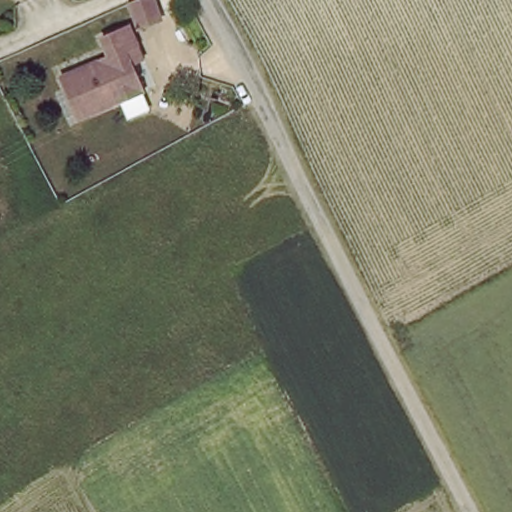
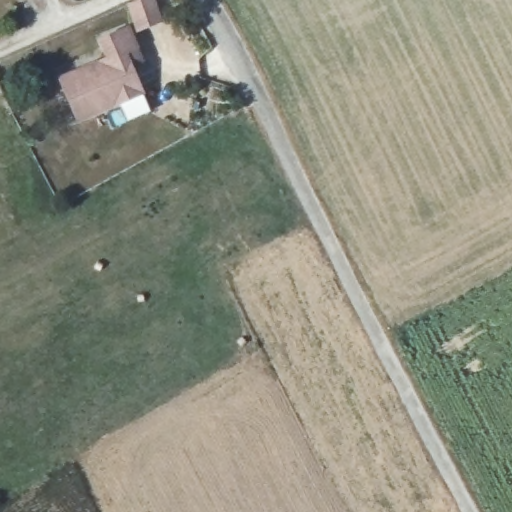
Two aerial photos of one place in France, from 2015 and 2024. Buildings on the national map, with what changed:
unchanged [(157,15),(137,25),(126,2),(130,0),(150,0),(157,15)]
unchanged [(134,48),(122,53),(139,94),(75,121),(58,79),(106,59),(98,40),(125,28),(134,48)]

